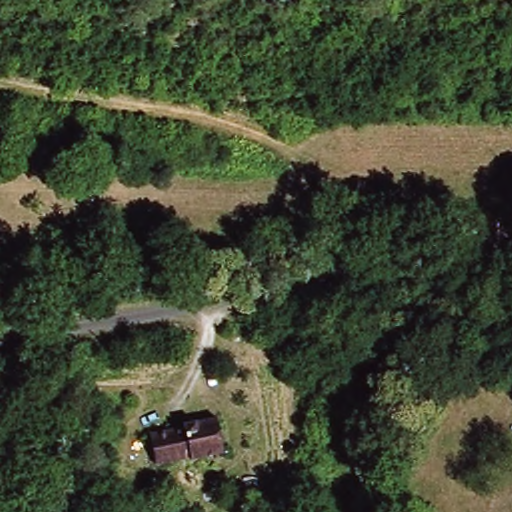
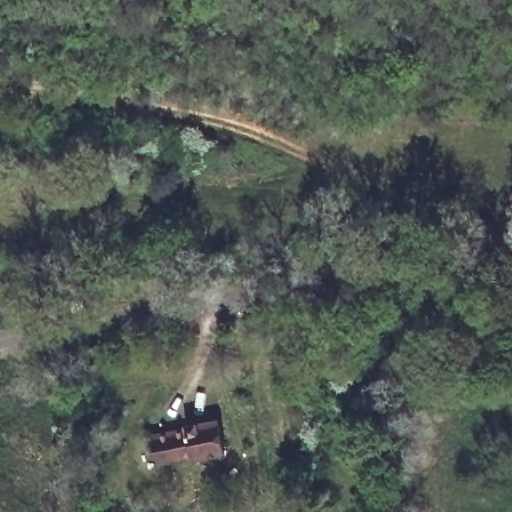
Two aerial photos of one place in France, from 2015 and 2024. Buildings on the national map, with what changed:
unchanged [(229,458),(202,466),(202,463),(164,470),(158,442),(190,435),(189,431),(221,425),(229,458)]

